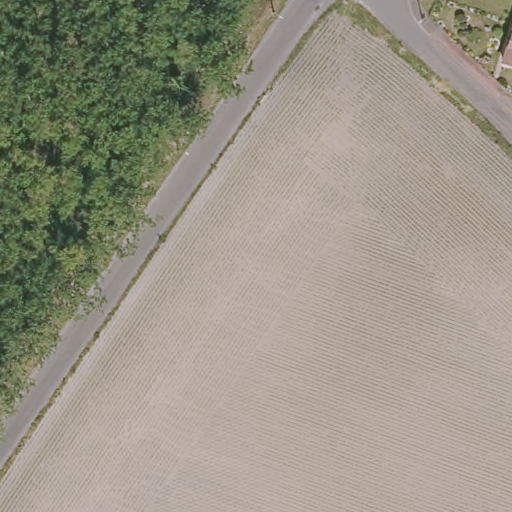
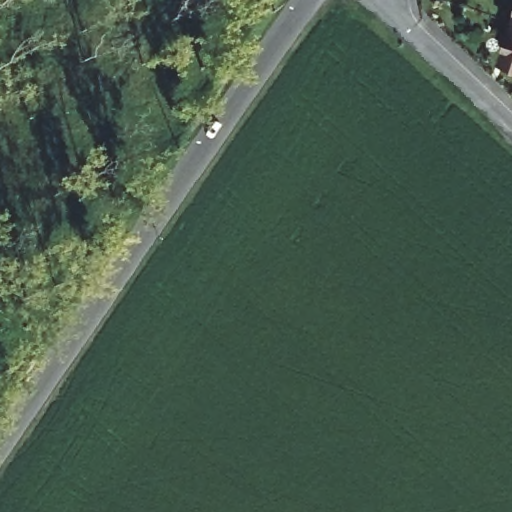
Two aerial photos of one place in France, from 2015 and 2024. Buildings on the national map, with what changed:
unchanged [(512,8),(512,18),(509,17),(512,8)]
unchanged [(497,55),(509,17),(512,18),(512,60),(497,55)]

